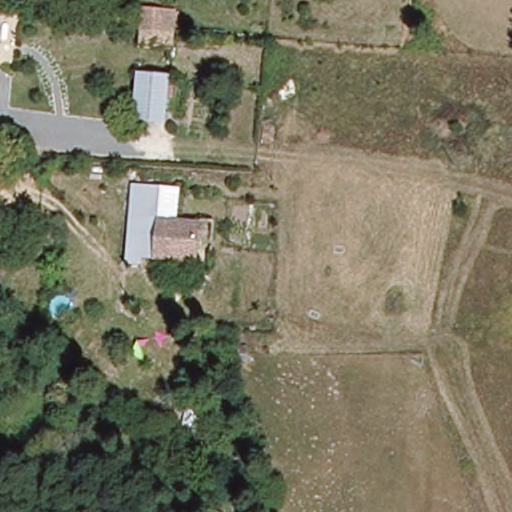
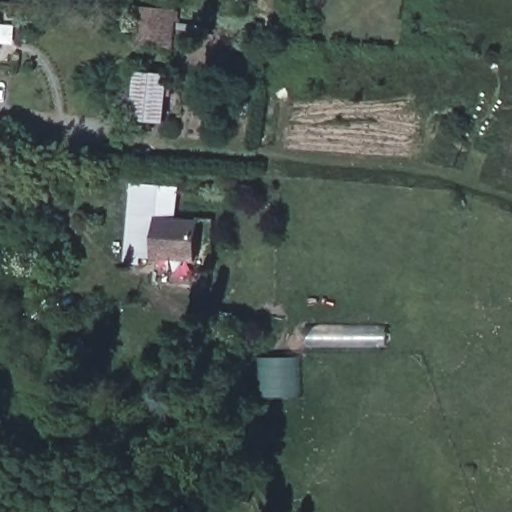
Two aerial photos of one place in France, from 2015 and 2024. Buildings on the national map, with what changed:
unchanged [(144,13),(174,16),(172,35),(172,44),(141,41),(142,31),(144,13)]
unchanged [(138,73),(169,75),(166,122),(134,119),(138,73)]
unchanged [(132,190),(159,192),(158,220),(157,221),(131,220),(132,190)]
unchanged [(197,264),(155,261),(157,221),(200,223),(197,264)]
new [(257,359),(302,358),(303,398),(257,398),(257,359)]

